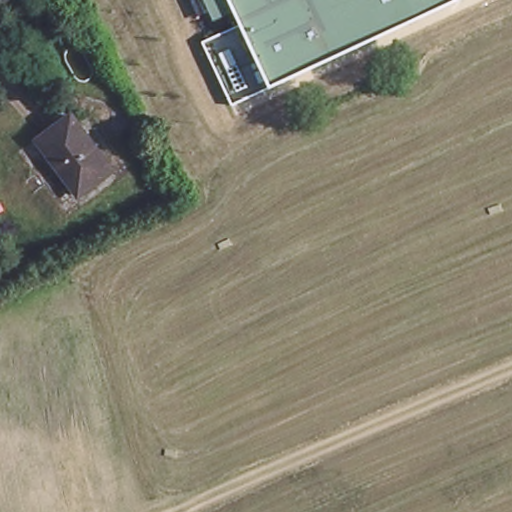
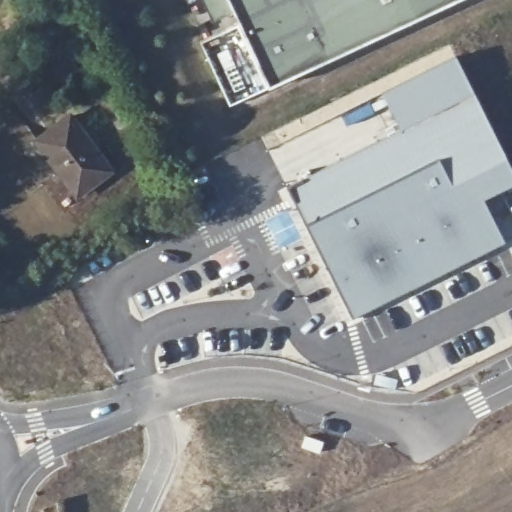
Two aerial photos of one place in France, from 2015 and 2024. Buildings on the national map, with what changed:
unchanged [(234,12),(213,21),(204,0),(453,0),(270,87),(234,12)]
new [(456,54),(475,93),(429,117),(398,129),(379,92),(456,54)]
new [(287,185),(398,129),(429,117),(475,93),(512,167),(512,186),(485,200),(506,244),(466,263),(408,295),(352,321),(287,189),(289,188),(287,185)]
unchanged [(76,194),(36,137),(68,115),(107,172),(76,194)]

